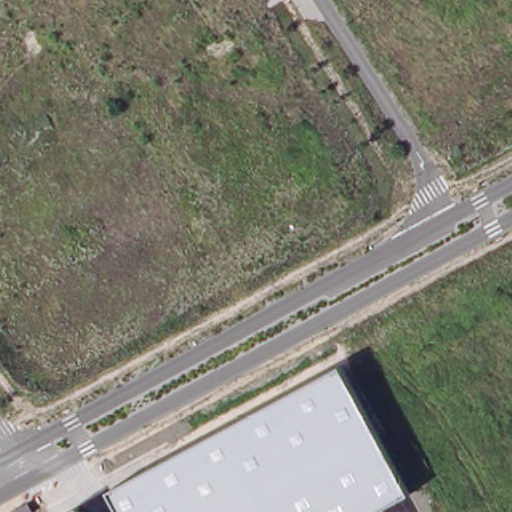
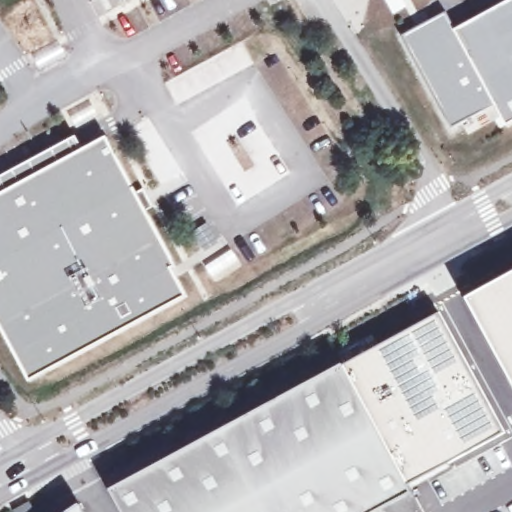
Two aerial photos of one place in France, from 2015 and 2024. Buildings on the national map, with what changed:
unchanged [(126,0),(131,0),(127,2),(126,0)]
new [(392,14),(385,0),(402,0),(405,5),(392,14)]
new [(451,127),(401,34),(445,11),(454,28),(505,0),(512,0),(512,120),(505,124),(495,103),(451,127)]
new [(75,135),(83,149),(106,137),(136,192),(142,189),(152,208),(147,211),(175,266),(172,268),(186,296),(28,381),(0,328),(0,193),(2,193),(0,189),(0,176),(75,135)]
new [(209,226),(218,240),(203,249),(195,235),(209,226)]
new [(512,273),(512,383),(466,298),(512,273)]
unchanged [(111,489),(340,364),(410,493),(376,512),(123,512),(111,489)]
unchanged [(82,505),(85,512),(70,512),(82,505)]

